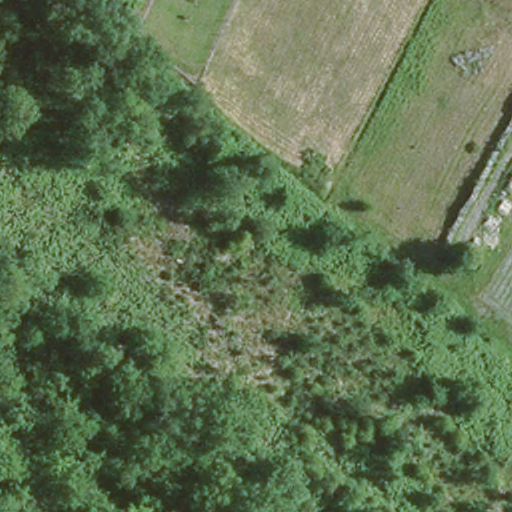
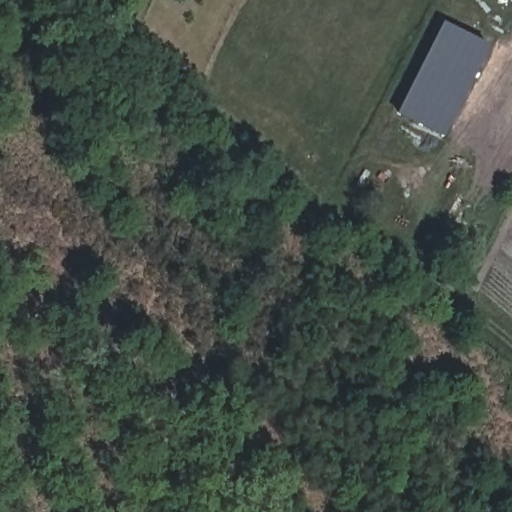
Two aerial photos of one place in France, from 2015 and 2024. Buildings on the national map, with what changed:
new [(444,137),(397,114),(442,24),(490,46),(444,137)]

